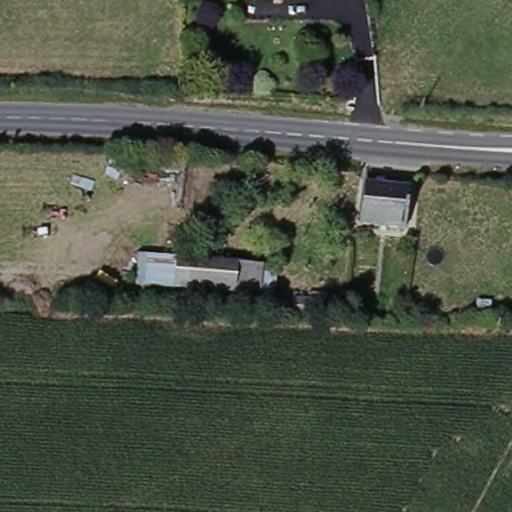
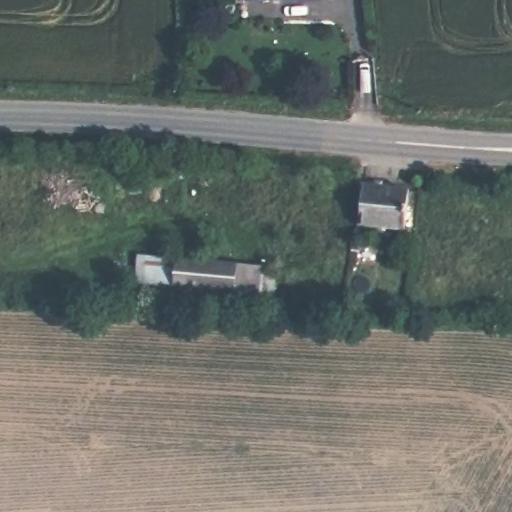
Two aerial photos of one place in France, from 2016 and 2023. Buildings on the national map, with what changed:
unchanged [(412,189),(410,225),(363,222),(364,186),(412,189)]
unchanged [(137,288),(139,256),(270,267),(263,299),(137,288)]
unchanged [(327,319),(311,318),(295,317),(295,301),(311,302),(329,303),(327,319)]

